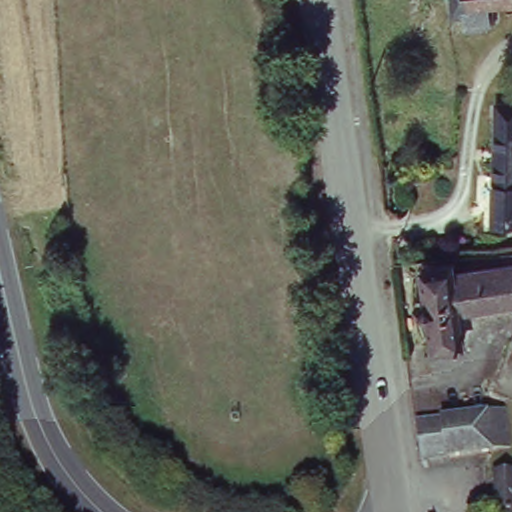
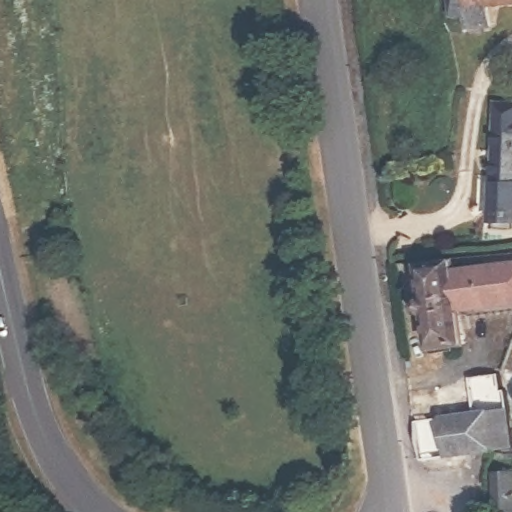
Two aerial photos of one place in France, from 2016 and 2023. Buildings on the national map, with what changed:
unchanged [(501,20),(479,21),(480,10),(465,10),(465,0),(501,0),(501,20)]
unchanged [(512,99),(512,213),(511,213),(510,221),(488,220),(490,176),(492,98),(512,99)]
unchanged [(421,272),(427,271),(426,262),(458,260),(460,269),(465,309),(470,337),(460,337),(461,345),(434,349),(433,342),(437,341),(436,335),(428,336),(426,330),(423,323),(423,320),(422,309),(420,298),(420,288),(421,272)]
unchanged [(465,309),(460,269),(512,261),(512,302),(466,309),(465,309)]
unchanged [(486,409),(507,407),(512,441),(512,448),(492,450),(422,460),(415,419),(486,409)]
unchanged [(490,503),(493,470),(512,471),(512,507),(512,512),(487,512),(486,502),(490,503)]

